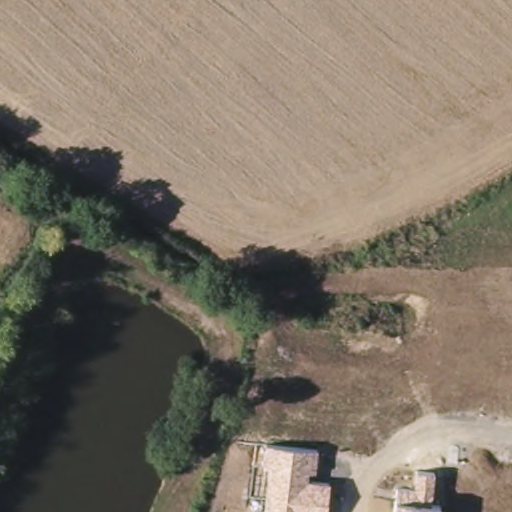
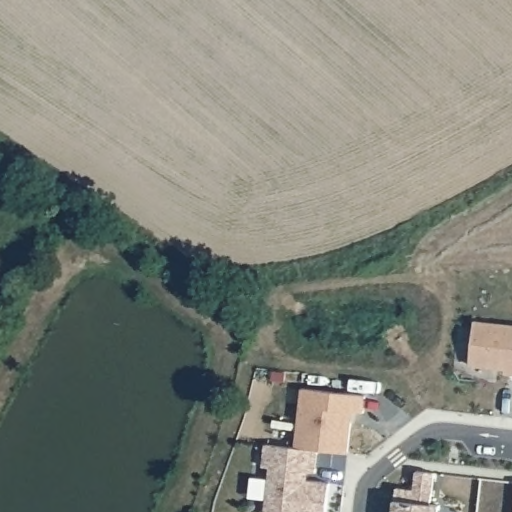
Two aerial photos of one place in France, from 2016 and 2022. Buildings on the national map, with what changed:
new [(482,324),(512,328),(512,370),(477,366),(482,324)]
new [(301,386),(365,393),(364,410),(352,408),(347,451),(318,450),(296,448),(301,386)]
unchanged [(318,450),(315,475),(306,473),(306,480),(331,483),(328,512),(265,512),(271,465),(262,464),(264,444),(318,450)]
unchanged [(433,472),(430,498),(443,500),(442,512),(394,512),(397,487),(414,488),(417,468),(433,472)]

